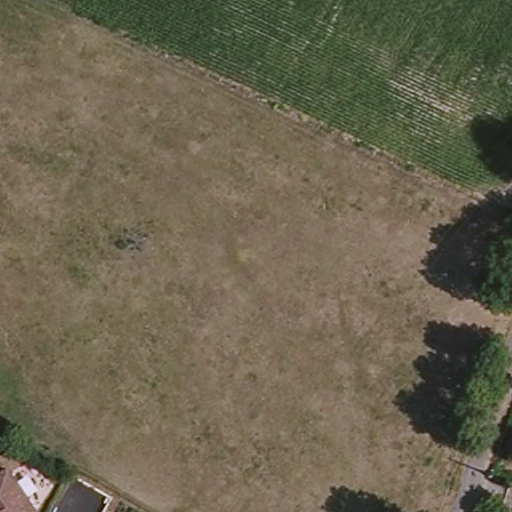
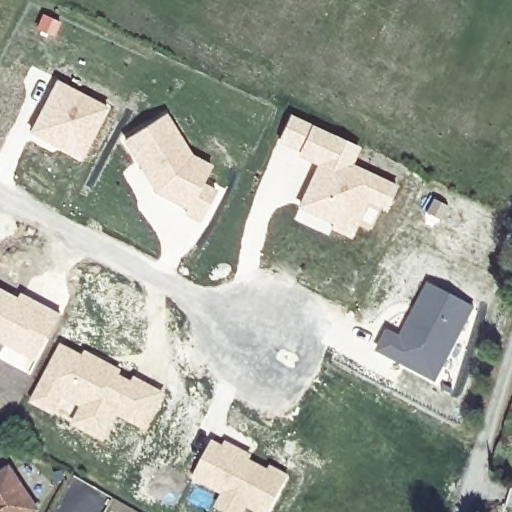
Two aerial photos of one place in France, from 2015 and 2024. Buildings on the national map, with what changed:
new [(54,78),(110,106),(81,161),(27,131),(54,78)]
new [(166,111),(191,152),(213,164),(204,181),(217,188),(199,221),(154,193),(120,140),(166,111)]
new [(289,112),(361,146),(353,163),(399,185),(381,213),(370,206),(351,238),(296,207),(315,164),(275,143),(289,112)]
new [(386,327),(398,334),(426,281),(473,306),(434,382),(373,351),(386,327)]
new [(18,297),(20,293),(61,315),(34,364),(0,345),(0,287),(18,297)]
new [(59,343),(81,354),(84,350),(164,393),(144,432),(117,417),(104,442),(56,413),(53,417),(27,403),(59,343)]
new [(211,439),(221,444),(224,439),(289,475),(270,512),(253,512),(246,509),(245,512),(221,512),(212,508),(218,495),(189,479),(211,439)]
unchanged [(7,471),(33,510),(30,512),(0,512),(0,476),(7,471)]

